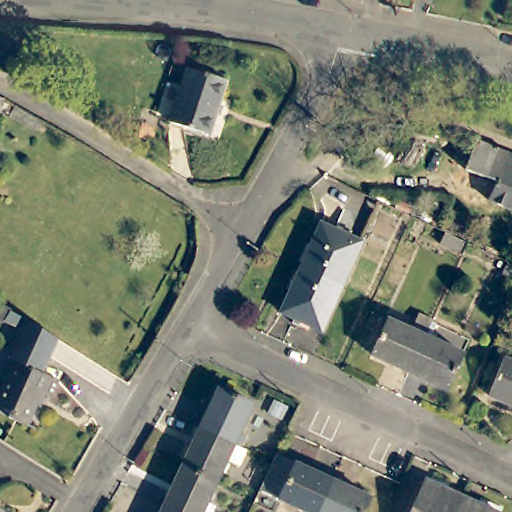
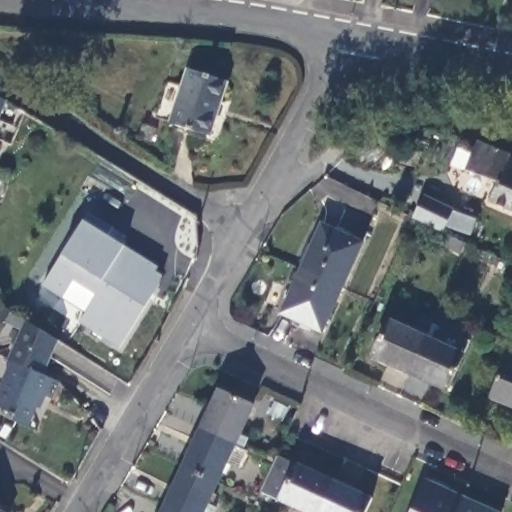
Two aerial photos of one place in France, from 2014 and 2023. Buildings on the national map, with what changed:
unchanged [(231,82),(215,137),(174,125),(190,70),(231,82)]
unchanged [(0,120),(0,99),(8,102),(0,120)]
demolished [(12,119),(18,108),(45,124),(37,135),(12,119)]
unchanged [(484,197),(491,180),(462,168),(475,137),(512,153),(512,209),(484,197)]
new [(61,253),(82,219),(89,210),(112,226),(106,233),(124,244),(157,266),(155,271),(162,276),(122,347),(80,321),(96,295),(74,281),(61,298),(42,285),(61,253)]
unchanged [(466,233),(453,228),(460,212),(472,217),(466,233)]
unchanged [(362,241),(341,284),(302,265),(323,223),(362,241)]
unchanged [(460,253),(442,244),(447,235),(465,244),(460,253)]
unchanged [(320,329),(280,310),(302,265),(341,284),(320,329)]
unchanged [(411,374),(370,355),(387,319),(410,330),(417,314),(433,322),(427,338),(411,374)]
unchanged [(0,412),(0,394),(4,384),(2,384),(11,365),(7,363),(22,326),(56,345),(42,378),(57,385),(51,402),(42,398),(27,431),(8,423),(11,417),(0,412)]
unchanged [(427,338),(462,355),(446,390),(411,374),(427,338)]
unchanged [(507,360),(512,363),(512,406),(491,397),(507,360)]
unchanged [(227,436),(205,426),(224,388),(256,403),(237,442),(227,436)]
unchanged [(227,436),(237,442),(219,481),(186,465),(205,426),(227,436)]
unchanged [(297,464),(298,462),(336,480),(321,512),(310,512),(263,489),(276,460),(278,455),(297,464)]
unchanged [(204,512),(187,512),(168,503),(186,465),(219,481),(204,512)]
unchanged [(372,497),(365,512),(321,512),(336,480),(372,497)]
unchanged [(457,512),(413,512),(429,480),(464,497),(457,512)]
unchanged [(493,512),(457,512),(464,497),(493,512)]
unchanged [(168,503),(187,512),(164,512),(168,503)]
unchanged [(0,509),(5,512),(0,512),(0,509)]

